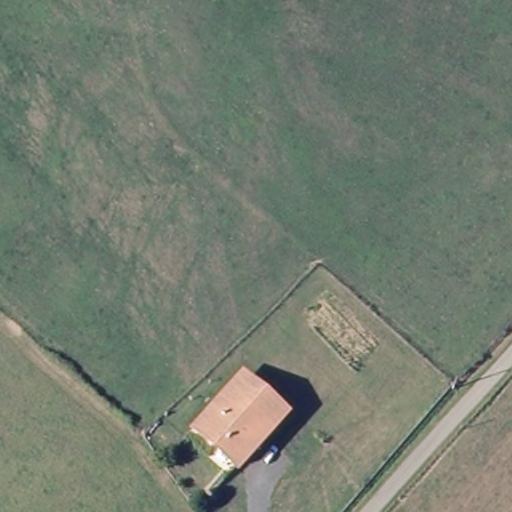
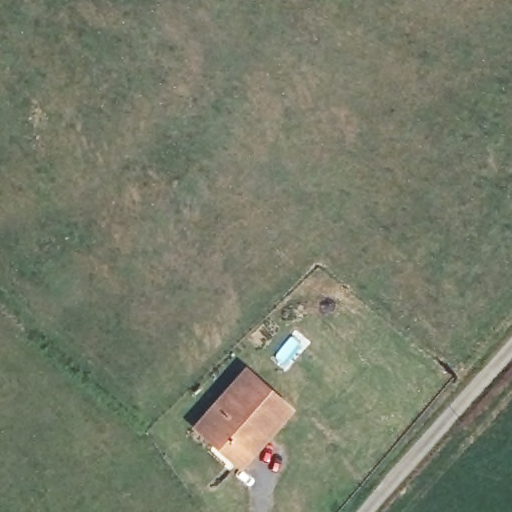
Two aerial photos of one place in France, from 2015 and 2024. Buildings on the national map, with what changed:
unchanged [(197,425),(248,365),(292,403),(255,446),(242,463),(197,425)]

